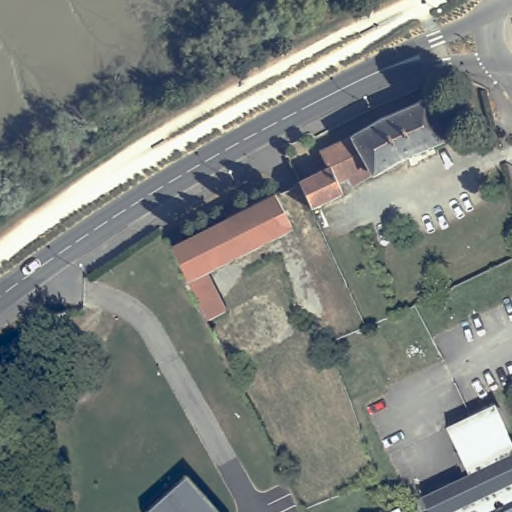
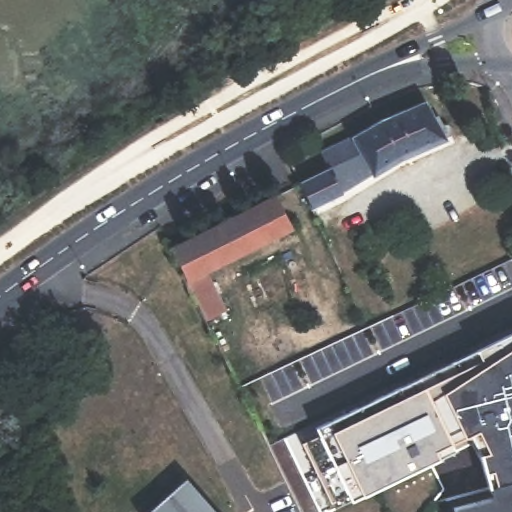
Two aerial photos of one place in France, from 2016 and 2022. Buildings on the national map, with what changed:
unchanged [(342,184),(347,194),(316,210),(303,184),(333,169),(325,152),(387,119),(430,102),(450,139),(405,159),(366,181),(359,185),(355,177),(342,184)]
unchanged [(239,215),(278,195),(297,229),(258,249),(239,215)]
unchanged [(174,248),(239,215),(258,249),(210,274),(231,311),(211,321),(174,248)]
new [(453,506),(489,497),(480,454),(472,443),(437,459),(351,502),(346,494),(332,500),(305,445),(319,438),(315,429),(512,333),(512,512),(455,512),(453,506)]
demolished [(496,410),(512,446),(512,454),(468,475),(448,432),(496,410)]
demolished [(421,497),(468,475),(512,454),(512,512),(428,512),(421,497)]
unchanged [(186,476),(216,512),(148,512),(186,476)]
demolished [(398,508),(400,512),(391,512),(398,508)]

